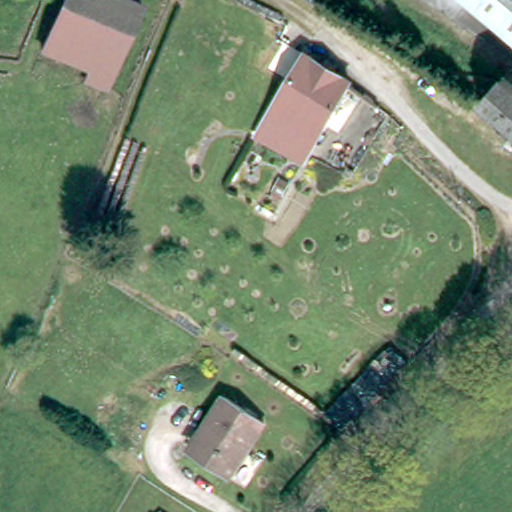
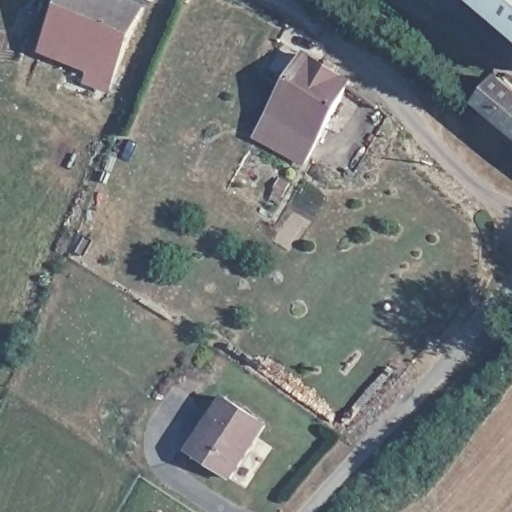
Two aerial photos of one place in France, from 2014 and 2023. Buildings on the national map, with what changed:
unchanged [(86,69),(90,59),(42,38),(60,0),(140,0),(107,78),(86,69)]
unchanged [(512,0),(512,24),(482,0),(512,0)]
unchanged [(300,163),(256,134),(305,53),(350,82),(345,90),(300,163)]
unchanged [(490,93),(503,77),(512,84),(512,131),(480,105),(490,93)]
unchanged [(263,418),(232,474),(197,454),(187,449),(208,412),(218,394),(263,418)]

